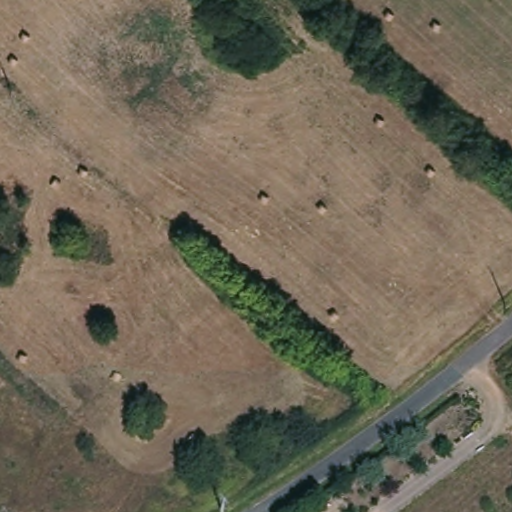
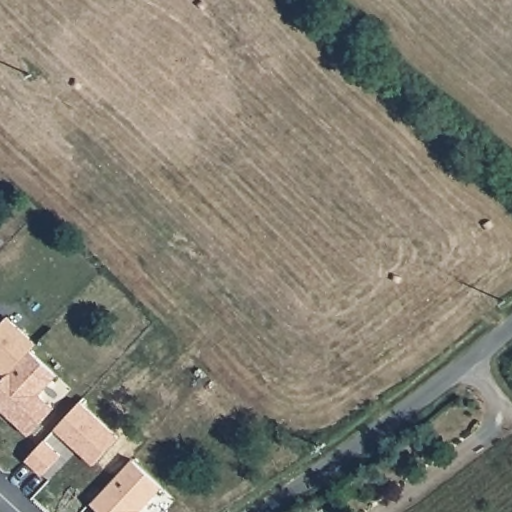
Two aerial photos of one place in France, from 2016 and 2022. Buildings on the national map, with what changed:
new [(0,370),(0,324),(7,316),(37,343),(6,376),(0,370)]
new [(38,395),(53,407),(28,435),(0,408),(0,381),(4,377),(29,350),(57,375),(38,395)]
new [(160,490),(140,512),(96,512),(89,506),(130,462),(160,490)]

